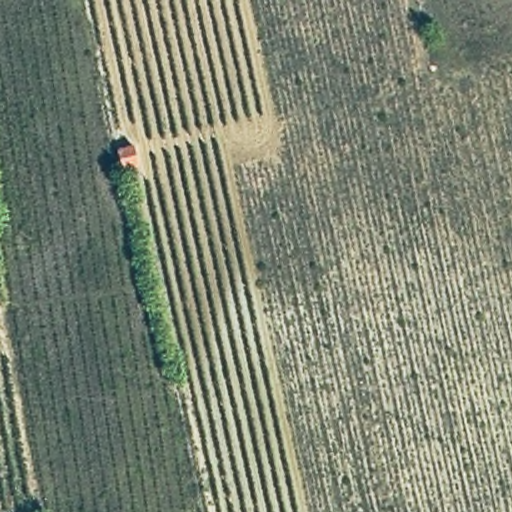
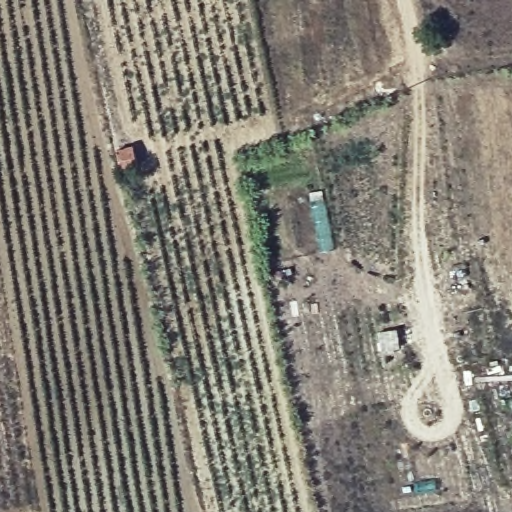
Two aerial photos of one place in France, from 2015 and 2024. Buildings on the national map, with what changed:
unchanged [(133,139),(140,164),(123,166),(116,145),(133,139)]

